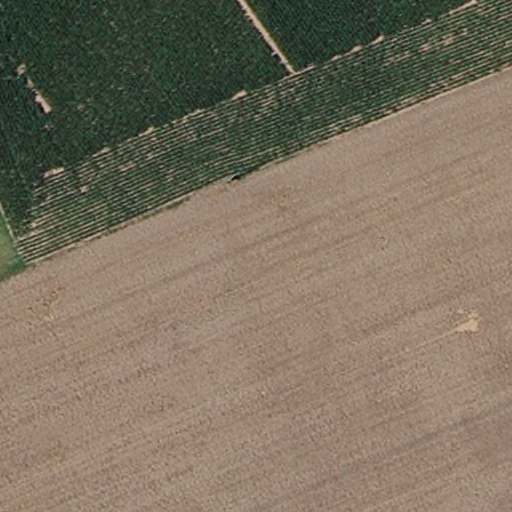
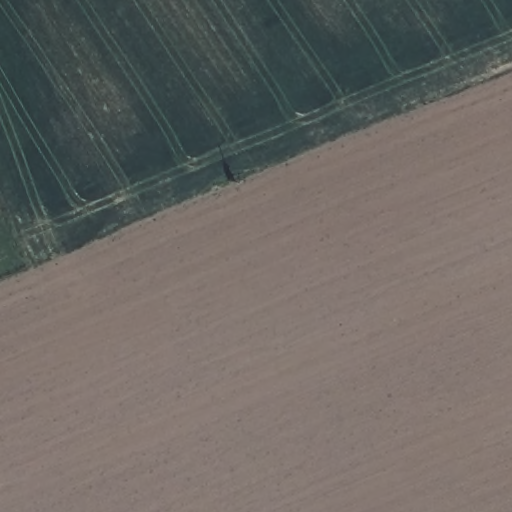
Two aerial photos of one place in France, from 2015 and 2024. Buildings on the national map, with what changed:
[]

